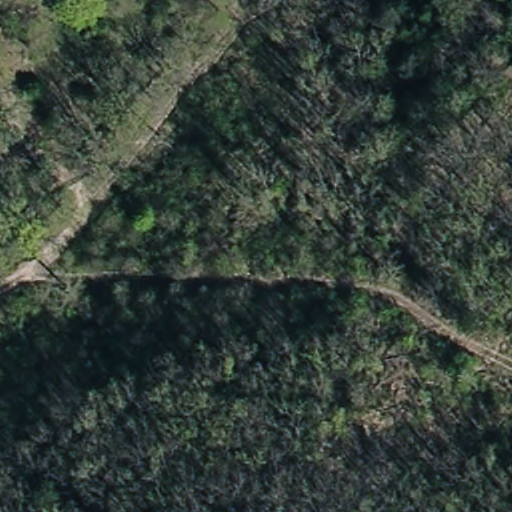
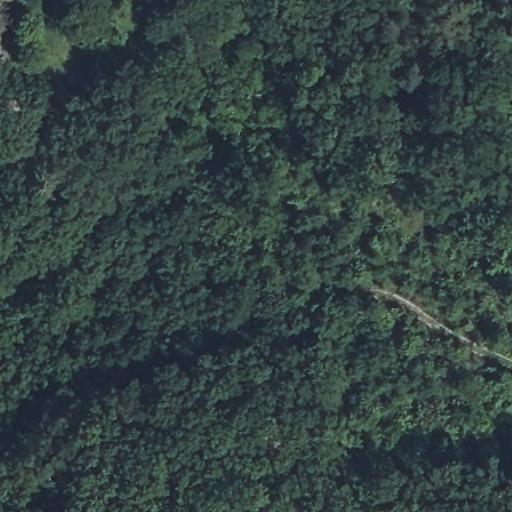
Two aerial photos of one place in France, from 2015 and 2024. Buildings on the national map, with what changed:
[]

